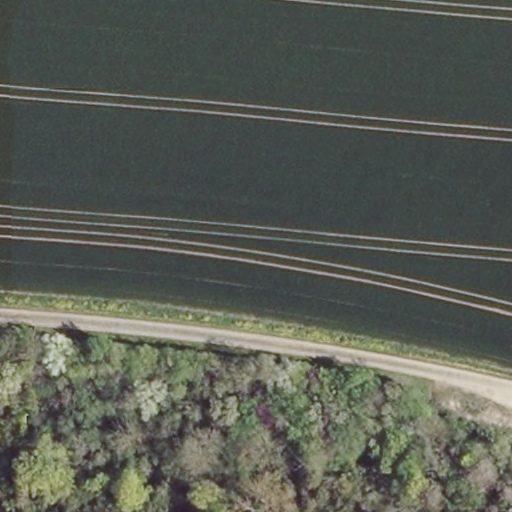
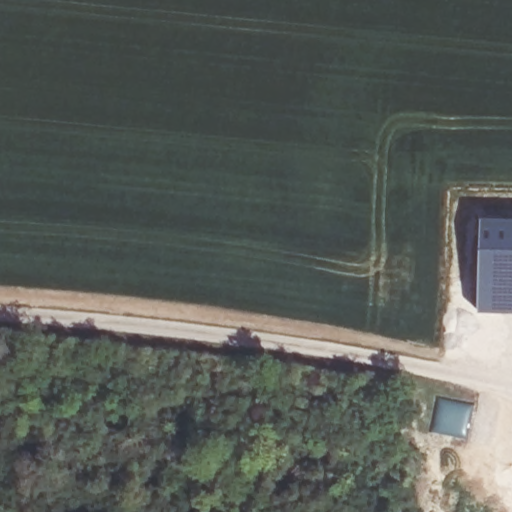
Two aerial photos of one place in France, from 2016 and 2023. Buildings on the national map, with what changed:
new [(480,215),(512,216),(512,311),(477,309),(480,215)]

